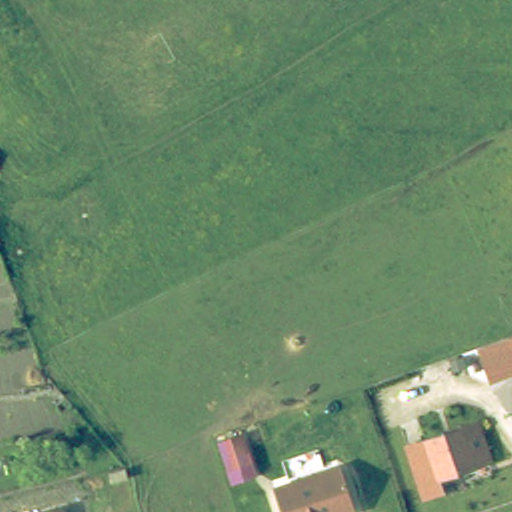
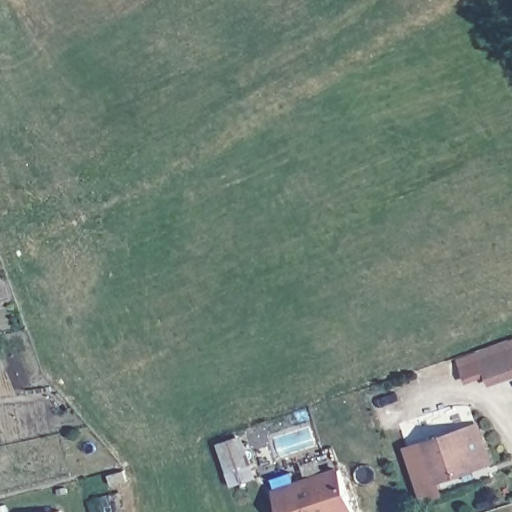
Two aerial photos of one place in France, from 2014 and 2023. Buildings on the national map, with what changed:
unchanged [(490,382),(478,350),(512,339),(512,376),(490,382)]
unchanged [(247,432),(261,476),(233,484),(219,439),(247,432)]
unchanged [(473,474),(437,486),(425,451),(460,439),(475,434),(478,444),(484,458),(487,469),(473,474)]
unchanged [(427,458),(430,467),(437,486),(444,484),(445,494),(422,502),(405,449),(422,443),(425,451),(427,458)]
unchanged [(342,473),(355,512),(282,512),(276,495),(342,473)]
unchanged [(127,477),(129,487),(113,491),(110,481),(127,477)]
unchanged [(64,512),(49,512),(63,508),(64,512)]

